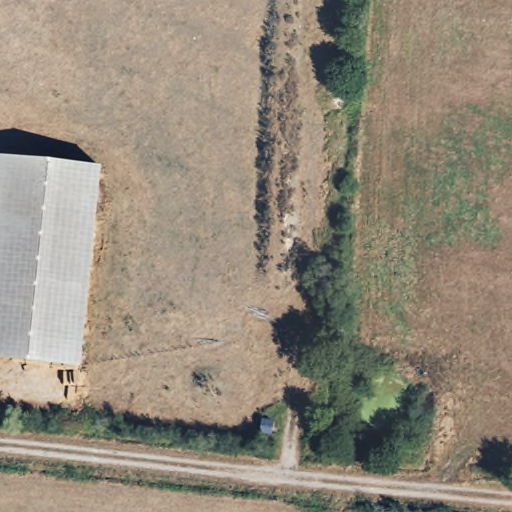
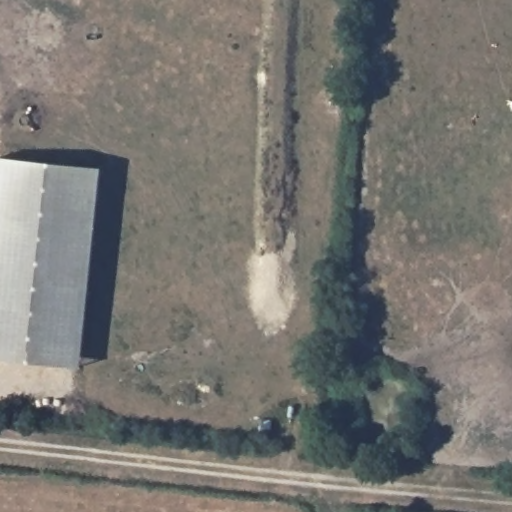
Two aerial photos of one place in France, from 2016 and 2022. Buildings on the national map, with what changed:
unchanged [(82,371),(0,362),(0,158),(102,167),(82,371)]

